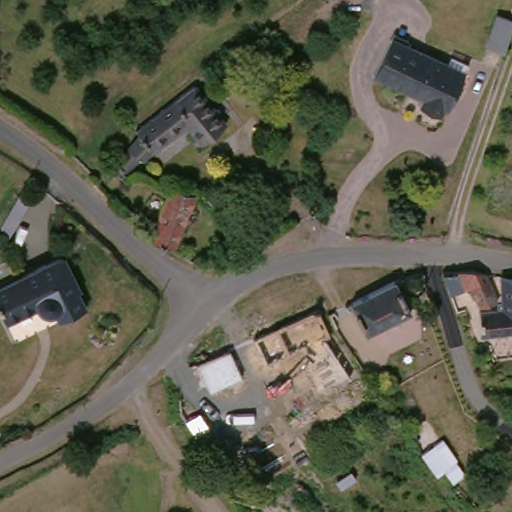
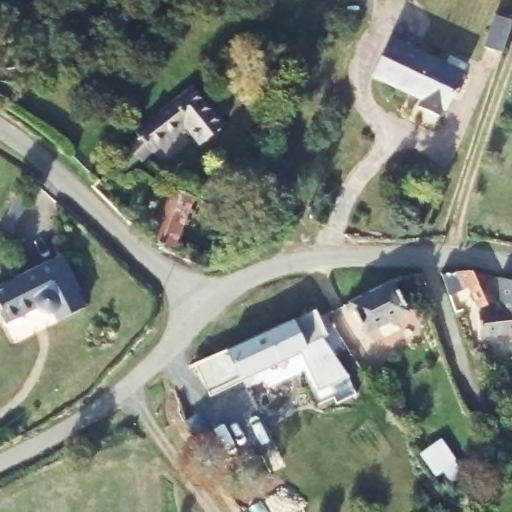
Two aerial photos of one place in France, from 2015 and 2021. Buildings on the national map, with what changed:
unchanged [(486,54),(494,23),(512,28),(512,42),(506,61),(486,54)]
unchanged [(441,120),(438,127),(419,119),(423,109),(372,87),(389,47),(445,74),(449,66),(469,75),(446,121),(441,120)]
unchanged [(224,130),(198,153),(179,131),(126,168),(123,166),(115,156),(134,142),(131,137),(193,94),(224,130)]
unchanged [(170,262),(156,257),(158,253),(141,245),(169,193),(199,208),(170,262)]
unchanged [(61,254),(79,286),(77,288),(86,304),(61,317),(56,308),(55,308),(54,308),(54,309),(52,308),(51,308),(50,308),(49,308),(48,308),(48,307),(47,307),(46,307),(46,306),(45,306),(44,306),(44,305),(43,305),(43,304),(42,304),(42,303),(41,303),(41,302),(41,301),(9,318),(0,302),(0,287),(61,254)]
unchanged [(217,274),(210,260),(223,254),(230,268),(217,274)]
unchanged [(467,280),(486,284),(496,310),(478,318),(470,299),(466,301),(458,281),(467,280)]
unchanged [(512,346),(479,349),(476,320),(499,318),(500,287),(512,290),(512,346)]
unchanged [(393,291),(408,324),(364,345),(349,312),(393,291)]
new [(303,354),(212,396),(197,364),(228,351),(295,319),(316,309),(329,334),(324,338),(351,378),(320,391),(303,354)]
demolished [(317,314),(330,343),(265,373),(251,343),(317,314)]
demolished [(227,358),(234,376),(201,390),(191,374),(227,358)]
unchanged [(416,463),(440,446),(465,484),(451,493),(444,483),(434,486),(416,463)]

